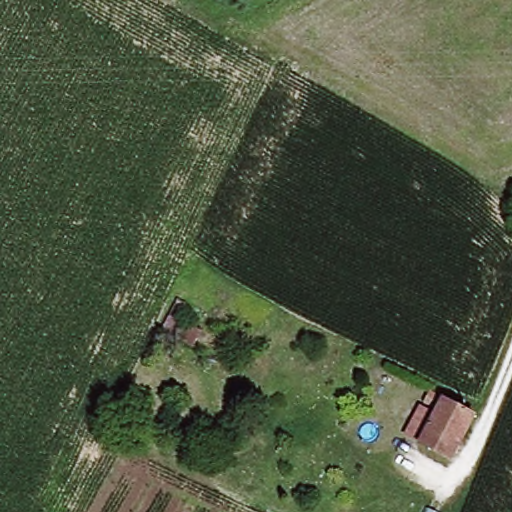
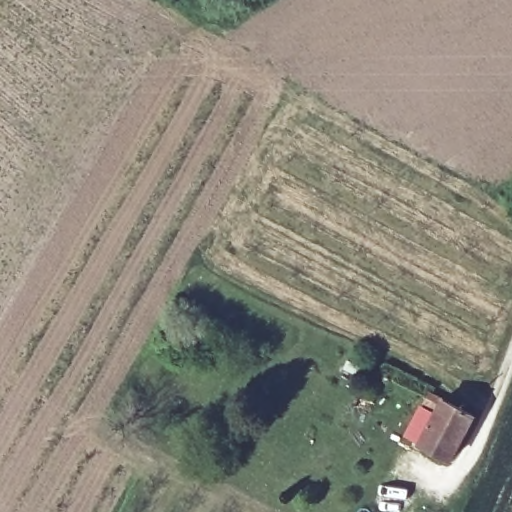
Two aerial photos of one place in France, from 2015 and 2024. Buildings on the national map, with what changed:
unchanged [(467,417),(444,459),(413,441),(436,400),(467,417)]

